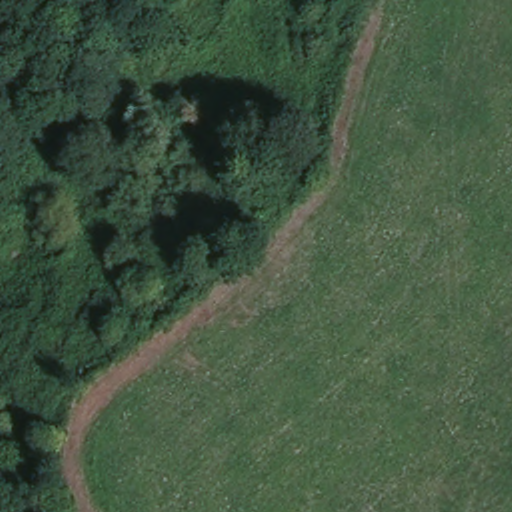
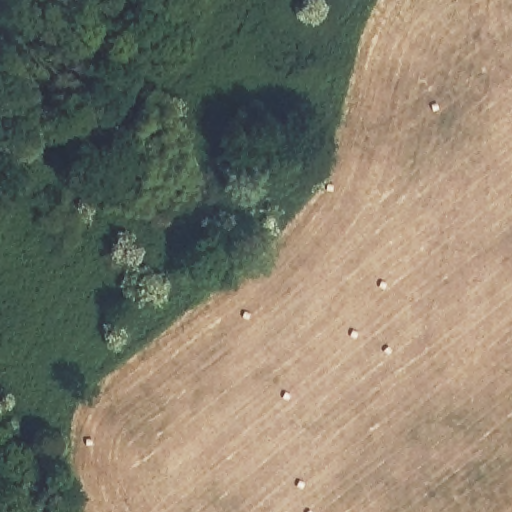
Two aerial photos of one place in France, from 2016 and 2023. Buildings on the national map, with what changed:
[]

